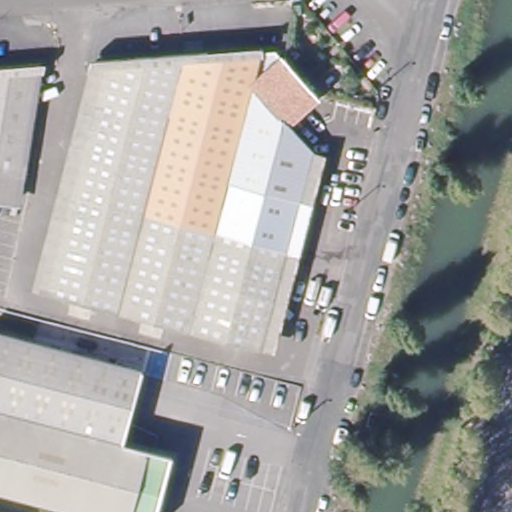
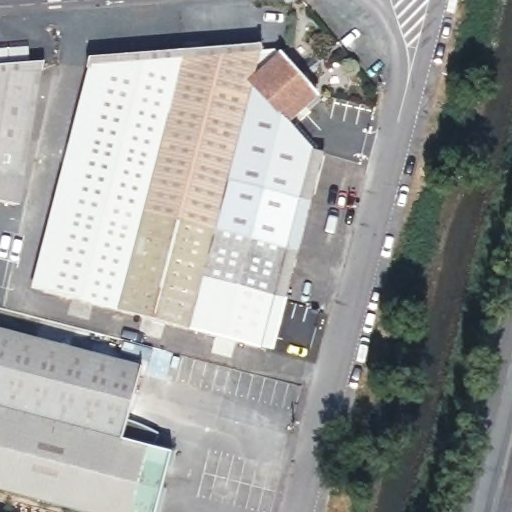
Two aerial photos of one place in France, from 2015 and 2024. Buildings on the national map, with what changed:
unchanged [(253,55),(247,85),(251,89),(282,60),(316,97),(286,128),(311,154),(263,350),(45,297),(102,66),(253,55)]
unchanged [(5,224),(0,223),(0,72),(29,69),(5,224)]
unchanged [(170,454),(155,512),(91,512),(0,489),(0,334),(139,370),(124,426),(158,438),(156,450),(170,454)]

